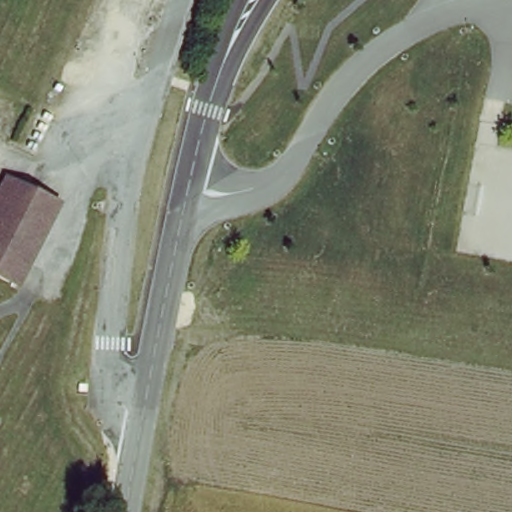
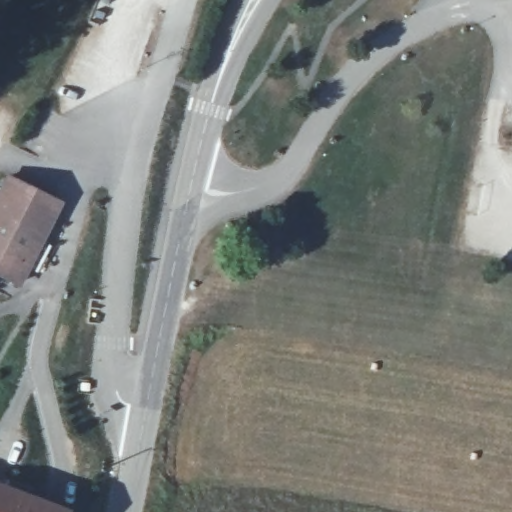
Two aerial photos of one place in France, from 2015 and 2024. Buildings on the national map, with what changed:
unchanged [(23,279),(0,268),(0,194),(12,169),(64,195),(23,279)]
new [(75,505),(72,512),(0,512),(0,478),(38,491),(75,505)]

